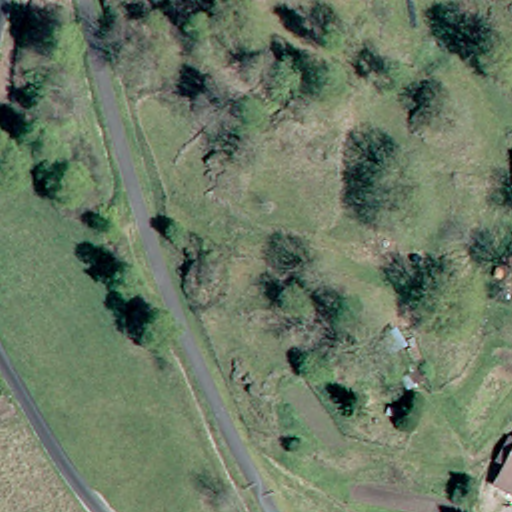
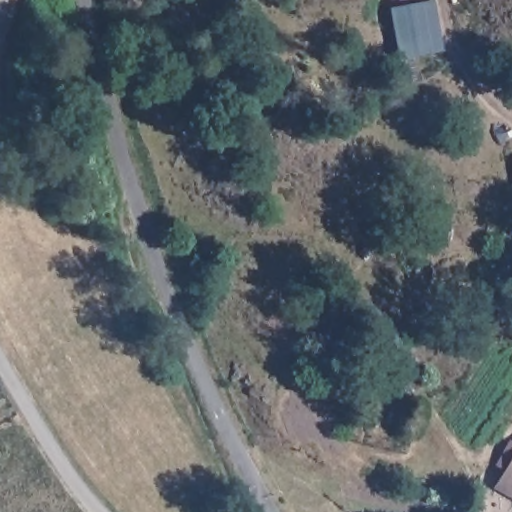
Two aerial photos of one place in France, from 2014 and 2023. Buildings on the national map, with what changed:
new [(435,0),(444,51),(400,59),(390,7),(429,0),(435,0)]
unchanged [(424,380),(430,388),(419,397),(412,385),(424,380)]
unchanged [(499,467),(490,464),(505,438),(512,442),(512,493),(490,481),(499,467)]

